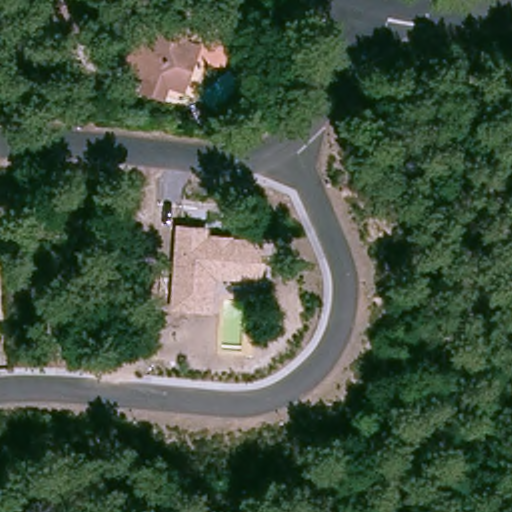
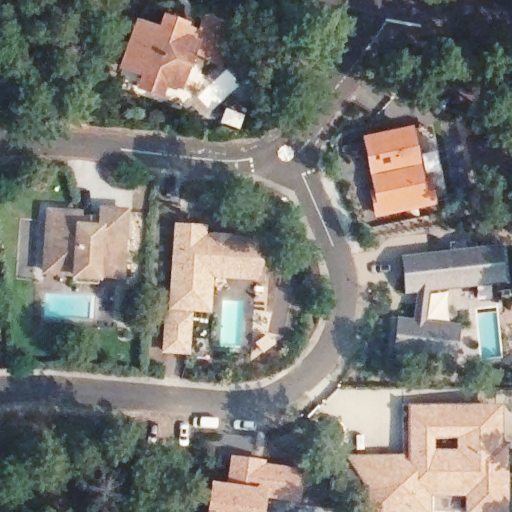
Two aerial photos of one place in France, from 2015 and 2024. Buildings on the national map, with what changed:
unchanged [(126,89),(131,76),(109,69),(124,25),(145,32),(150,20),(172,27),(171,29),(186,34),(191,19),(219,28),(206,65),(178,55),(166,89),(152,84),(147,97),(126,89)]
new [(414,126),(420,153),(435,150),(440,174),(427,181),(428,182),(434,181),(437,206),(375,218),(361,136),(414,126)]
new [(46,271),(50,210),(81,212),(102,213),(102,209),(127,211),(122,276),(98,274),(97,283),(76,282),(77,273),(46,271)]
unchanged [(210,226),(209,235),(267,238),(265,280),(217,279),(215,314),(170,312),(175,225),(210,226)]
new [(499,246),(504,286),(430,292),(426,321),(459,324),(455,363),(393,356),(398,318),(411,319),(413,295),(405,296),(400,257),(499,246)]
new [(407,480),(407,411),(497,413),(495,490),(467,491),(466,499),(432,497),(431,512),(375,512),(375,490),(369,479),(407,480)]
new [(265,464),(304,470),(301,502),(265,497),(264,512),(208,512),(212,482),(226,484),(230,456),(266,460),(265,464)]

